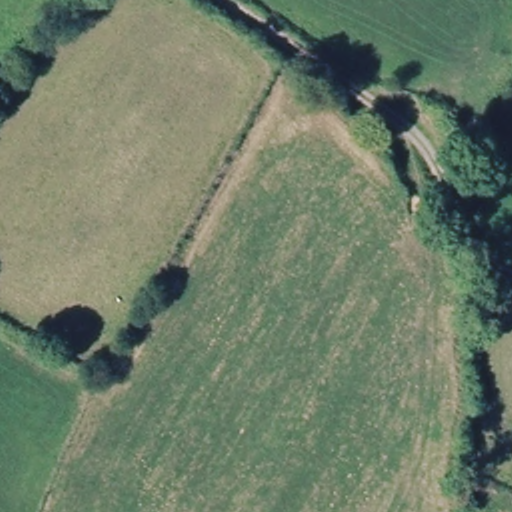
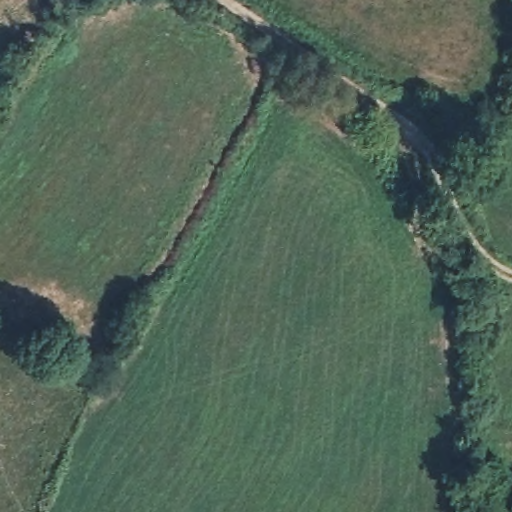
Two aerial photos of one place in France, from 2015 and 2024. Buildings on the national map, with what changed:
[]

